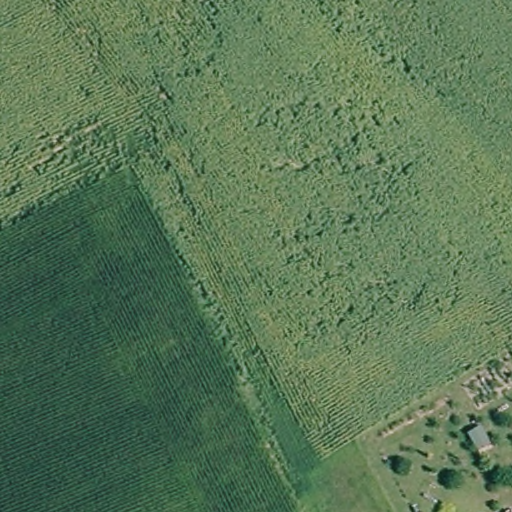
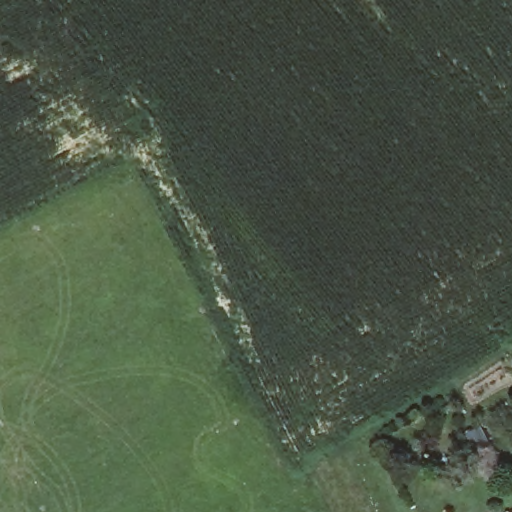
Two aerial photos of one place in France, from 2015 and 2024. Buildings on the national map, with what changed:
unchanged [(493,442),(480,448),(472,431),(484,425),(493,442)]

